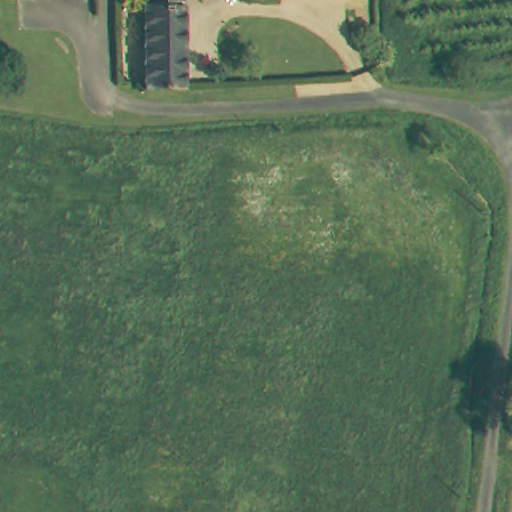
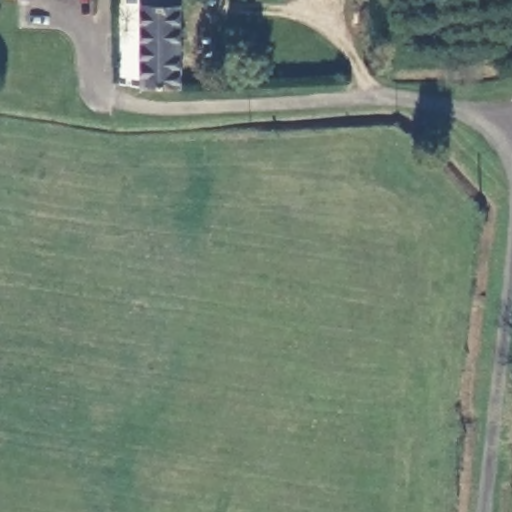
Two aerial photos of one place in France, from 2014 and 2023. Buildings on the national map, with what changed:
unchanged [(137,77),(137,0),(179,0),(179,78),(178,80),(137,81),(137,77)]

